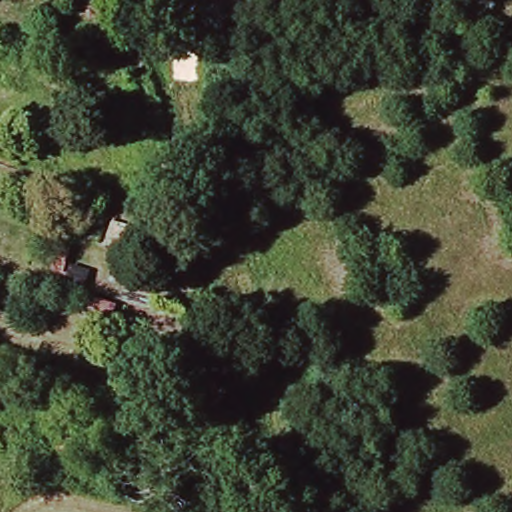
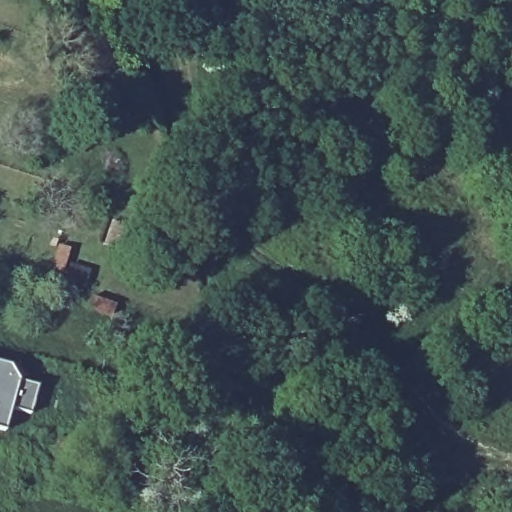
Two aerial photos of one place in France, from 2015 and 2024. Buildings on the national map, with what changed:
new [(9,366),(18,380),(37,386),(29,415),(10,410),(4,432),(0,431),(0,364),(9,366)]

